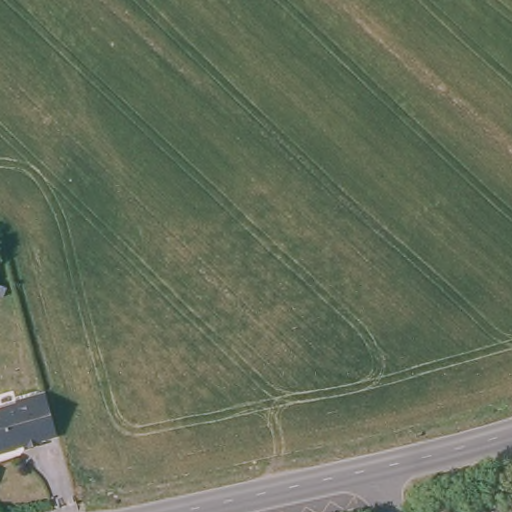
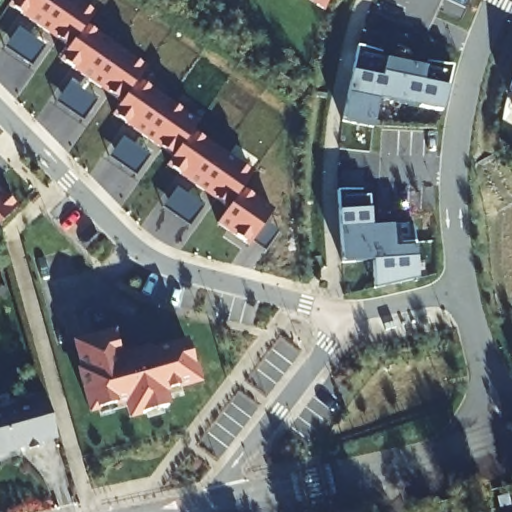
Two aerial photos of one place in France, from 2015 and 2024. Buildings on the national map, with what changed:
new [(12,0),(79,0),(95,11),(85,27),(145,67),(136,79),(200,120),(192,129),(253,172),(240,188),(274,209),(265,222),(278,231),(265,250),(250,241),(248,245),(245,244),(217,224),(227,208),(166,166),(172,156),(112,114),(120,102),(60,60),(69,47),(7,6),(12,0)]
new [(324,10),(309,0),(328,0),(324,10)]
new [(5,47),(18,27),(45,47),(32,66),(5,47)]
new [(345,125),(360,57),(454,77),(445,116),(382,102),(375,132),(345,125)]
new [(57,102),(71,82),(98,100),(83,121),(57,102)]
new [(110,157),(123,137),(150,156),(136,175),(110,157)]
new [(163,207),(177,187),(205,205),(189,226),(163,207)]
new [(0,191),(17,207),(0,224),(0,191)]
new [(370,198),(372,231),(414,230),(415,282),(375,294),(374,262),(343,263),(337,201),(370,198)]
new [(168,394),(172,408),(125,420),(122,410),(86,418),(68,342),(117,328),(122,347),(150,341),(152,346),(188,336),(201,385),(168,394)]
unchanged [(44,434),(45,440),(27,445),(25,440),(13,443),(15,450),(0,454),(0,413),(19,407),(17,402),(47,392),(57,430),(44,434)]

